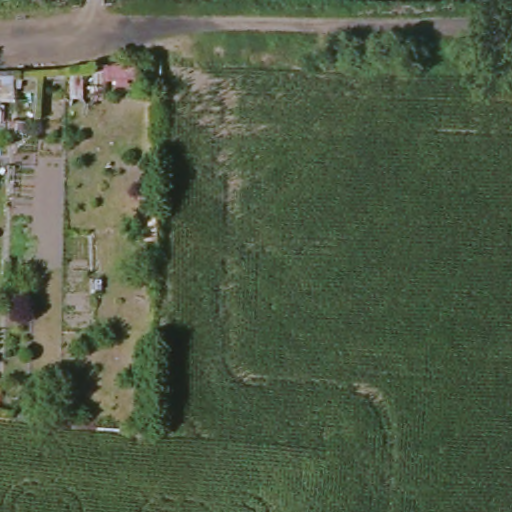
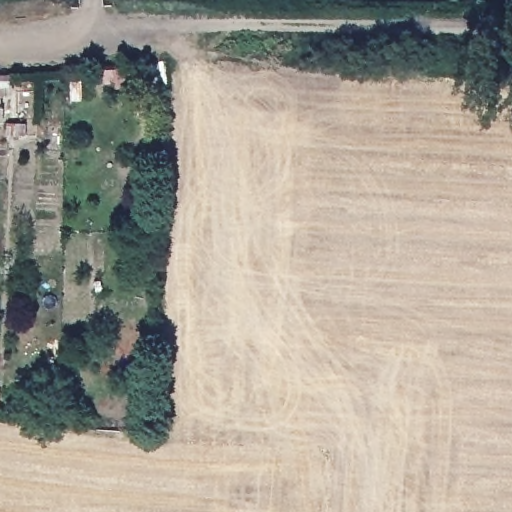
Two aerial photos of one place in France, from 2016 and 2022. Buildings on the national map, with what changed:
unchanged [(11,76),(11,103),(0,103),(0,76),(11,76)]

